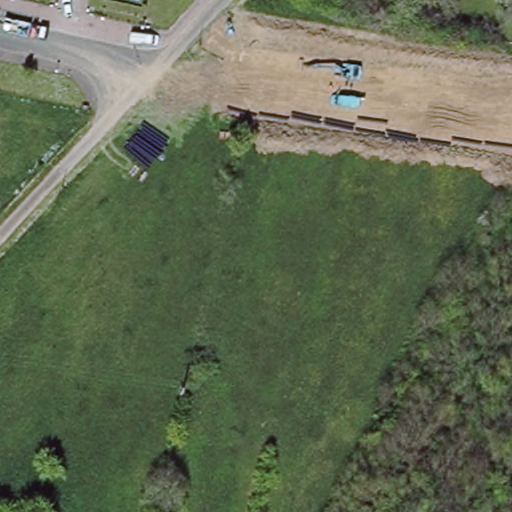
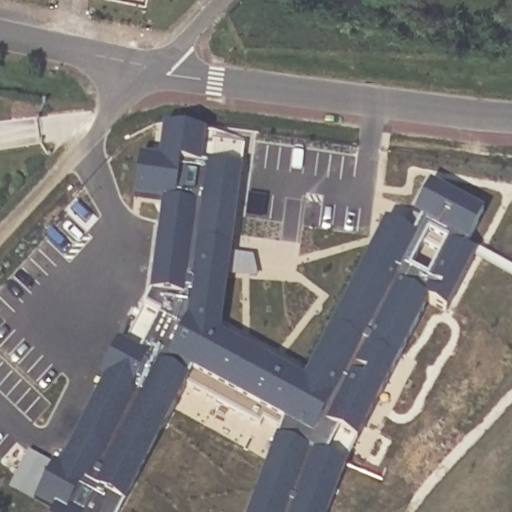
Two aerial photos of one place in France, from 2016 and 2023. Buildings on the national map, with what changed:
new [(215,330),(295,371),(380,215),(474,255),(443,310),(426,302),(345,462),(324,512),(228,512),(271,431),(187,389),(120,512),(18,512),(142,302),(162,128),(247,131),(215,330)]

